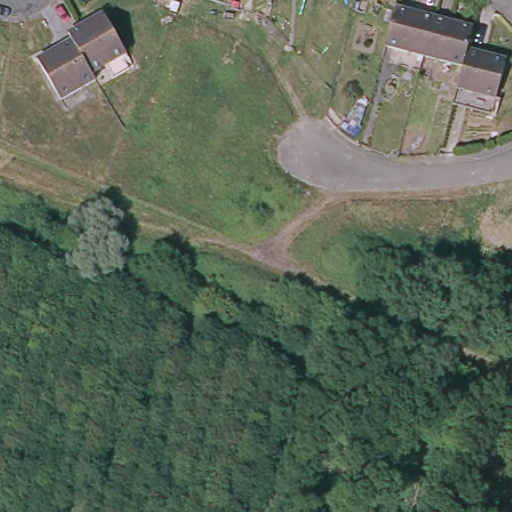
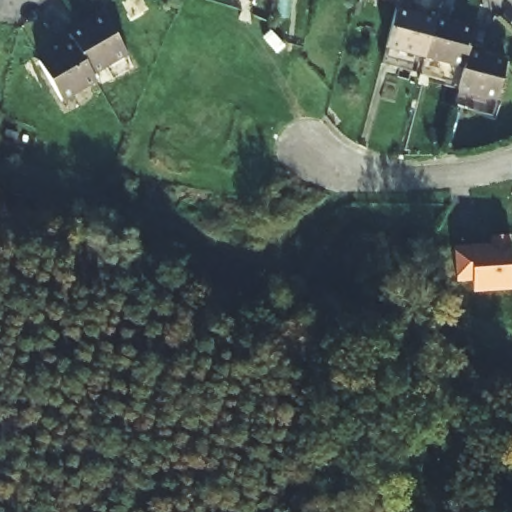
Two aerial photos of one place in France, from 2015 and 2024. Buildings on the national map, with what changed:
unchanged [(434,17),(424,56),(387,46),(397,7),(434,17)]
unchanged [(113,78),(105,66),(93,72),(73,41),(69,34),(104,14),(126,52),(123,55),(130,67),(113,78)]
unchanged [(474,27),(468,50),(464,66),(424,56),(434,17),(474,27)]
unchanged [(60,100),(38,61),(73,41),(93,72),(95,79),(60,100)]
unchanged [(468,50),(507,60),(497,99),(458,89),(464,66),(468,50)]
new [(473,292),(472,281),(456,282),(454,247),(512,244),(512,251),(512,290),(473,292)]

